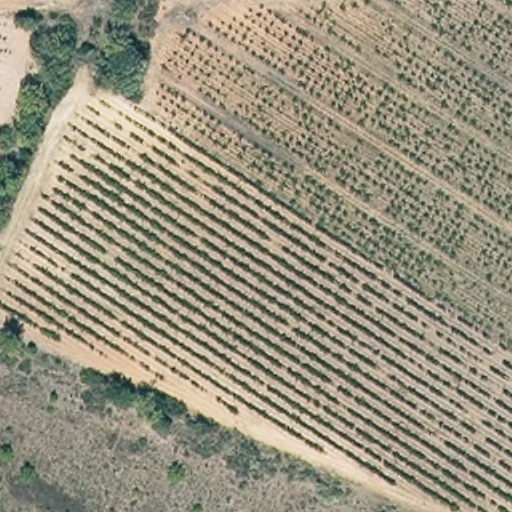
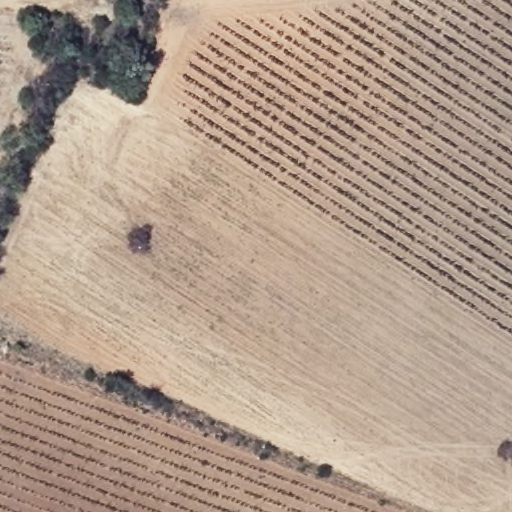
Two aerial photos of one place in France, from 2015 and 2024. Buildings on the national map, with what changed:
[]

